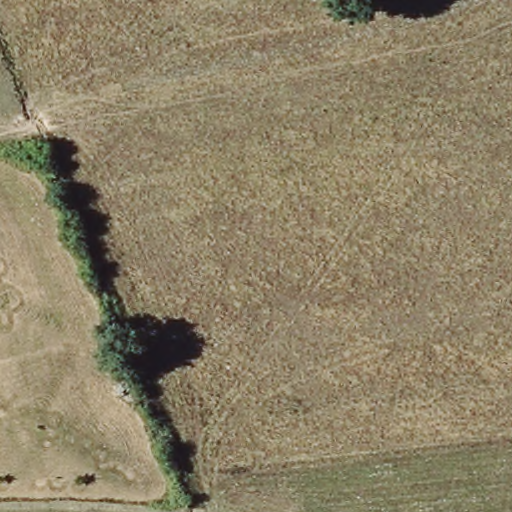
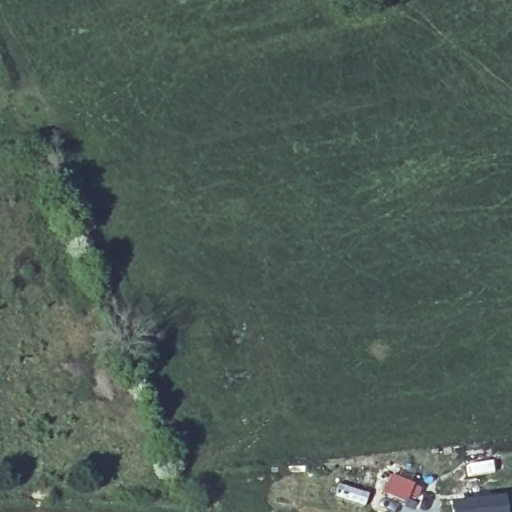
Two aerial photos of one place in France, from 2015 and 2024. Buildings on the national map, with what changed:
new [(506,512),(451,512),(450,501),(503,495),(506,512)]

